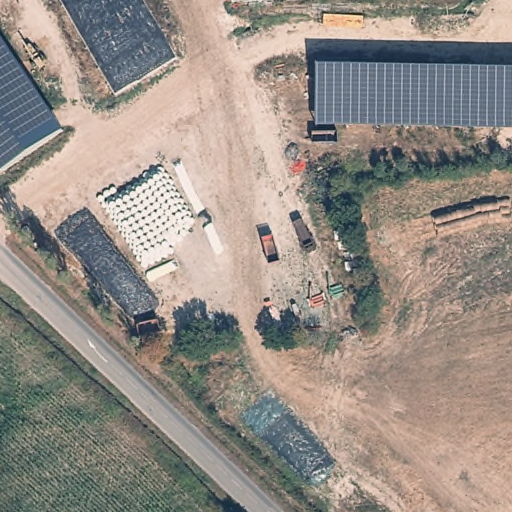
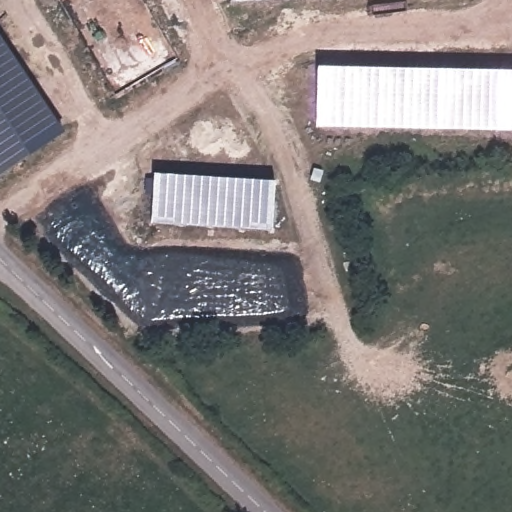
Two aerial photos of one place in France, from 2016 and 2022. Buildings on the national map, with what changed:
unchanged [(225,0),(251,0),(225,1),(225,0)]
unchanged [(7,182),(0,172),(0,28),(71,129),(74,134),(7,182)]
unchanged [(318,67),(512,71),(512,131),(317,128),(318,67)]
new [(155,174),(275,182),(272,232),(152,224),(155,174)]

